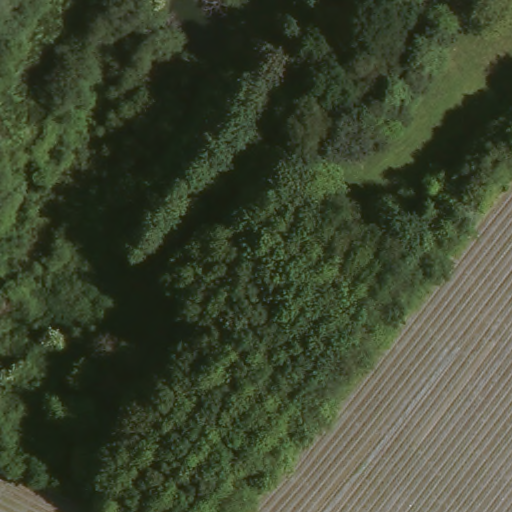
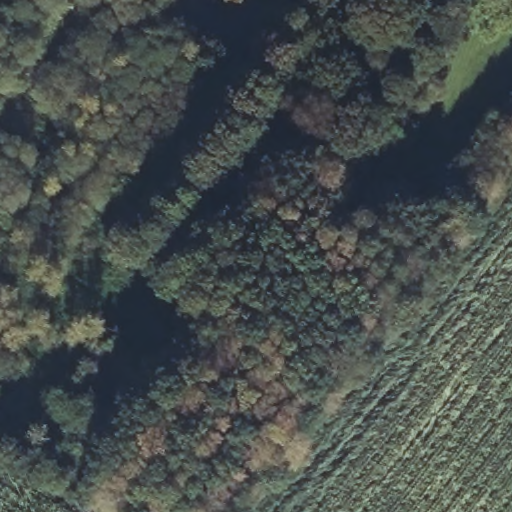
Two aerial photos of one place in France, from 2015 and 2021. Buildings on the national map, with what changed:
[]

